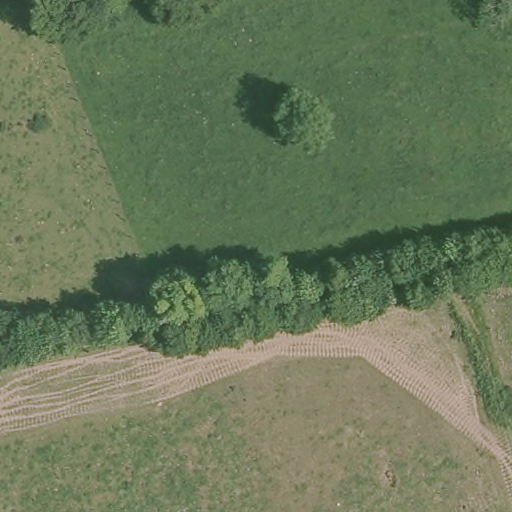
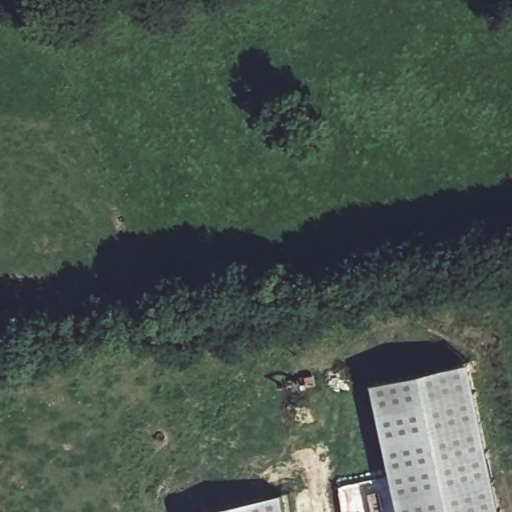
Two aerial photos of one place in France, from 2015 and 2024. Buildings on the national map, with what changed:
new [(463,361),(495,512),(392,512),(365,381),(463,361)]
new [(282,489),(286,512),(185,512),(185,510),(282,489)]

